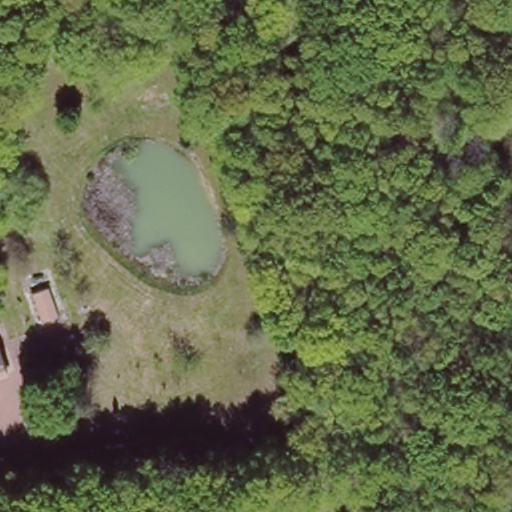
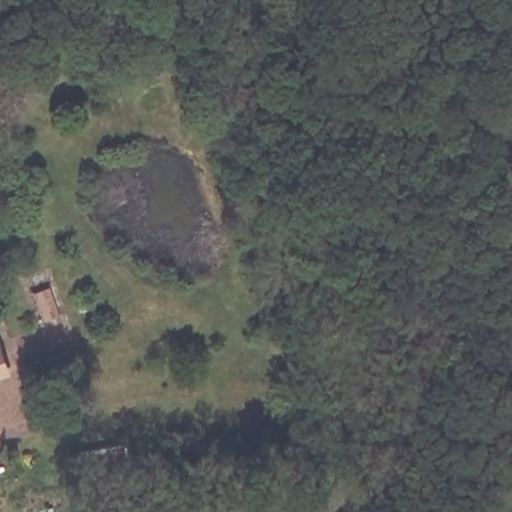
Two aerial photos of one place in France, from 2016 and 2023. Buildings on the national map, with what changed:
unchanged [(57,285),(68,313),(55,318),(44,290),(57,285)]
unchanged [(8,363),(0,366),(0,339),(1,339),(8,363)]

